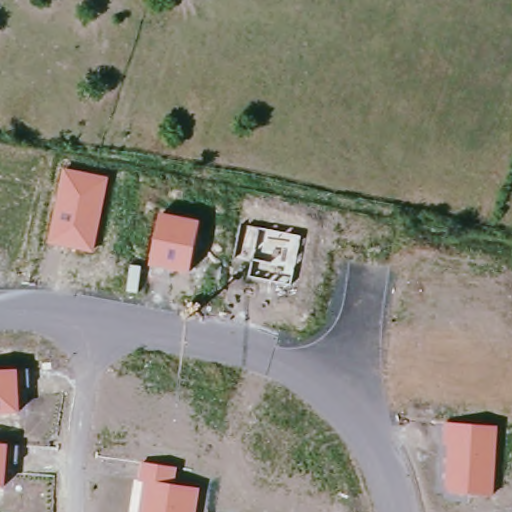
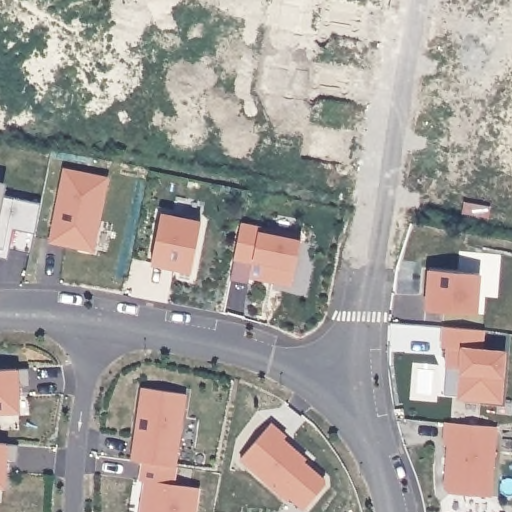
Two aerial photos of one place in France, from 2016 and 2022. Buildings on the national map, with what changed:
unchanged [(108,178),(95,251),(48,242),(62,169),(108,178)]
demolished [(137,209),(146,183),(161,189),(152,214),(137,209)]
new [(31,254),(0,248),(0,195),(41,203),(31,254)]
unchanged [(199,221),(190,272),(151,264),(156,236),(158,237),(163,214),(199,221)]
unchanged [(301,236),(292,283),(248,274),(251,258),(236,255),(241,223),(301,236)]
new [(8,258),(0,256),(0,248),(9,250),(8,258)]
new [(482,321),(424,318),(429,272),(483,276),(482,321)]
new [(444,327),(482,330),(481,351),(504,353),(500,402),(459,398),(461,368),(447,367),(448,348),(442,348),(444,327)]
unchanged [(28,386),(19,387),(20,413),(0,413),(0,370),(28,370),(28,386)]
new [(144,388),(186,394),(176,467),(141,461),(132,461),(144,388)]
unchanged [(496,428),(490,496),(441,490),(444,446),(443,447),(444,422),(496,428)]
new [(272,424),(286,437),(284,440),(306,459),(304,462),(324,480),(324,485),(303,507),(292,497),(289,500),(242,459),(272,424)]
unchanged [(15,465),(5,464),(4,490),(0,489),(0,444),(17,445),(15,465)]
unchanged [(178,467),(176,484),(201,489),(197,512),(138,512),(143,481),(137,480),(141,461),(176,467),(178,467)]

